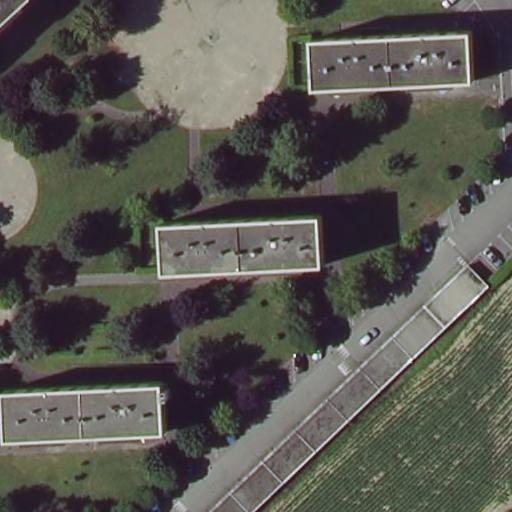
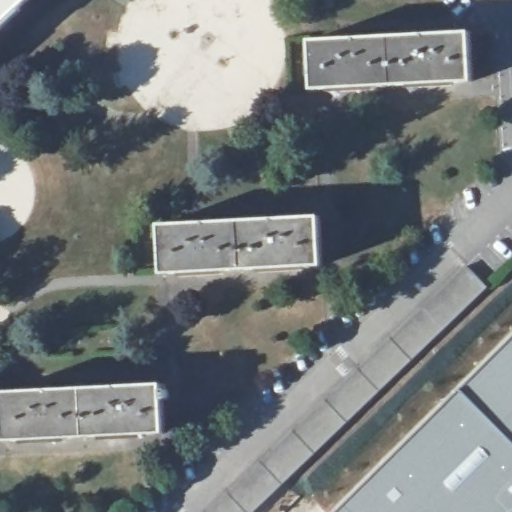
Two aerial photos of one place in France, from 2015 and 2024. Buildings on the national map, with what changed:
unchanged [(0,22),(0,0),(23,0),(0,22)]
unchanged [(310,41),(470,24),(475,77),(315,93),(310,41)]
unchanged [(154,225),(313,209),(319,257),(159,276),(154,225)]
unchanged [(203,512),(466,261),(489,285),(251,512),(203,512)]
new [(512,335),(512,512),(334,512),(459,387),(512,335)]
unchanged [(161,396),(165,428),(4,440),(0,396),(0,390),(160,380),(161,385),(166,384),(166,395),(161,396)]

